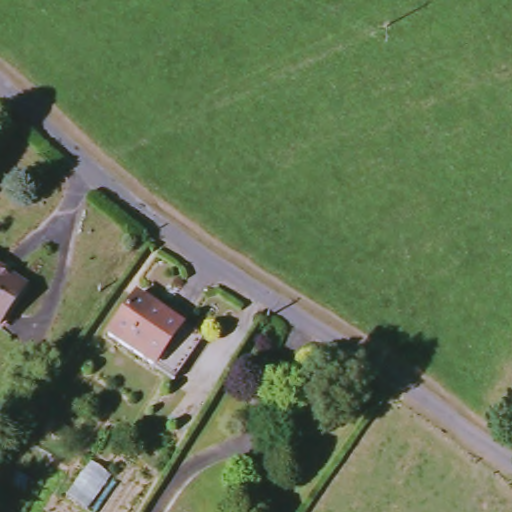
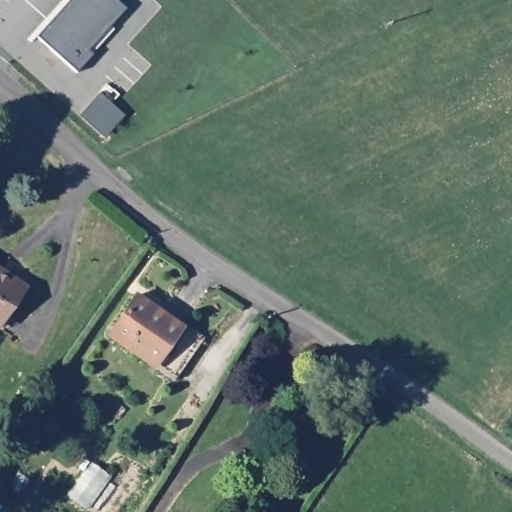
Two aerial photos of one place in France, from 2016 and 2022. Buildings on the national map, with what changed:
new [(92,54),(77,71),(38,36),(69,0),(118,0),(126,8),(88,50),(92,54)]
unchanged [(10,274),(7,279),(32,294),(8,330),(0,325),(0,268),(10,274)]
unchanged [(137,300),(183,330),(203,344),(178,381),(158,369),(111,338),(137,300)]

